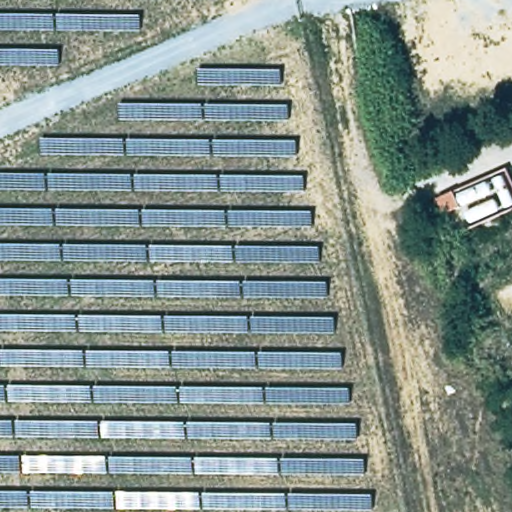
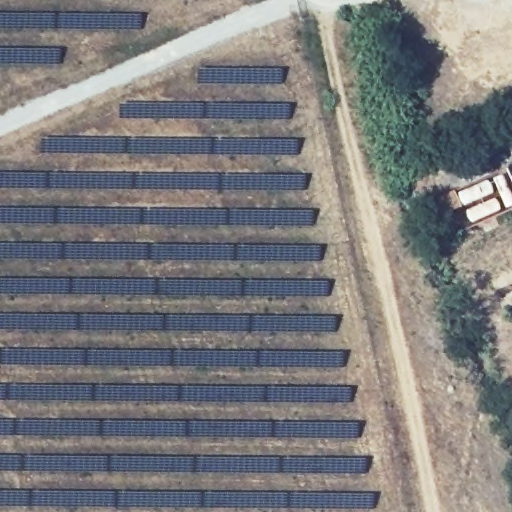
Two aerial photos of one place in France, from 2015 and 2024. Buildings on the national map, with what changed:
[]

